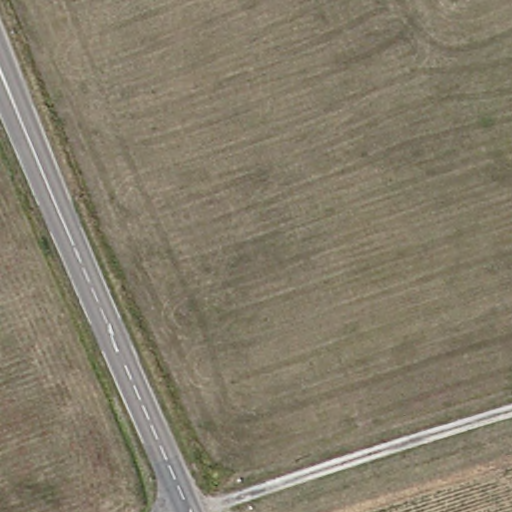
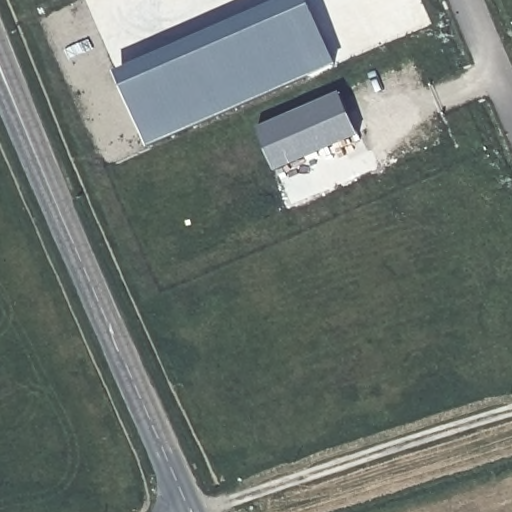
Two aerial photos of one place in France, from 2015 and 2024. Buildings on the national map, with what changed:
new [(279,0),(310,0),(338,63),(150,147),(119,71),(279,0)]
new [(358,139),(276,173),(257,129),(340,95),(358,139)]

